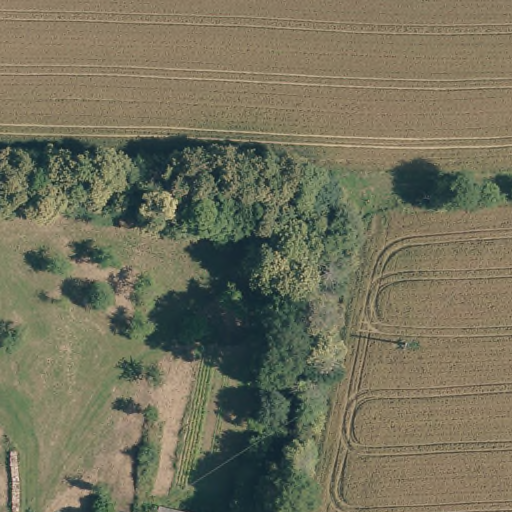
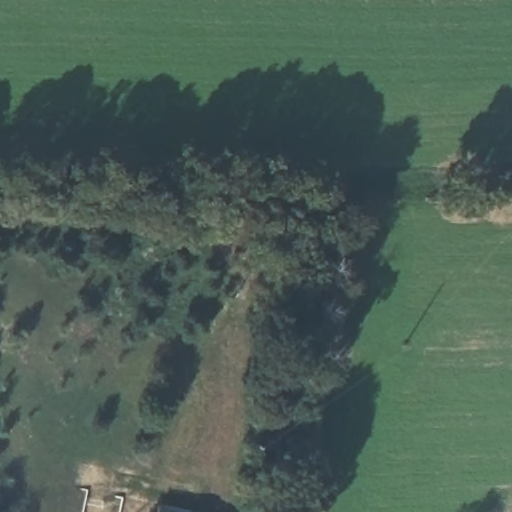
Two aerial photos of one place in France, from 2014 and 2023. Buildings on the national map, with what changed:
unchanged [(155,507),(177,512),(153,512),(155,507)]

